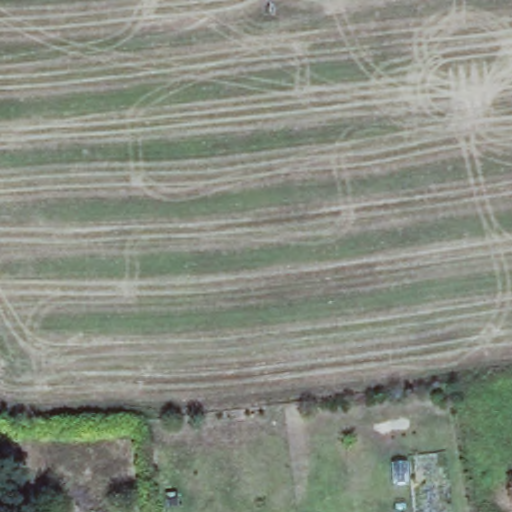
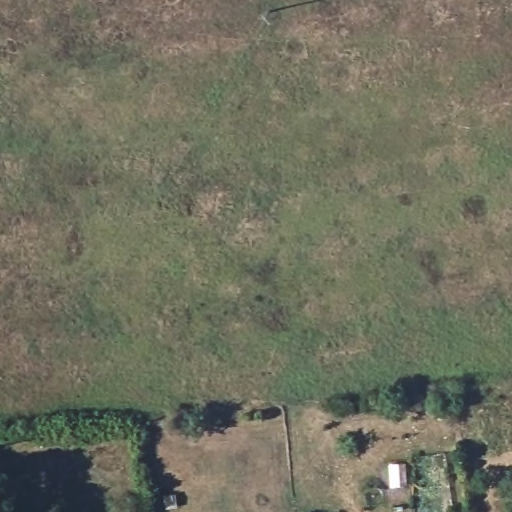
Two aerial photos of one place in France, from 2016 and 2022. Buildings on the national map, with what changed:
[]

